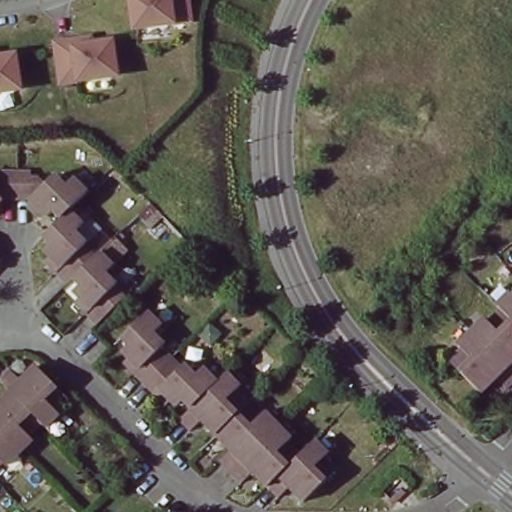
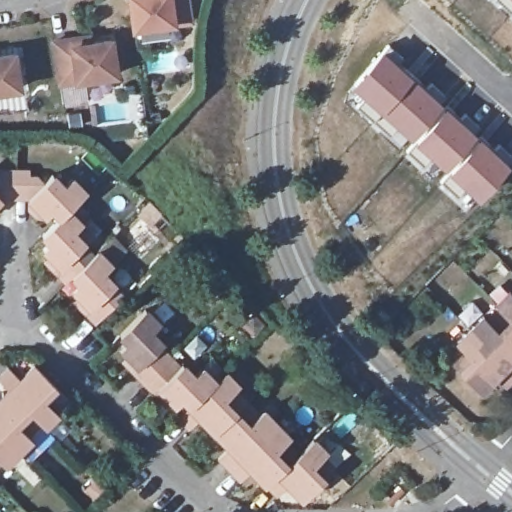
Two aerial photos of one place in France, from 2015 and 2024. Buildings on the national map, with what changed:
unchanged [(134,27),(129,0),(186,0),(189,20),(134,27)]
new [(512,0),(512,16),(497,0),(512,0)]
unchanged [(116,74),(60,82),(54,41),(72,39),(89,36),(90,43),(111,40),(116,74)]
new [(385,50),(444,104),(410,142),(366,109),(369,106),(350,89),(385,50)]
unchanged [(19,87),(0,90),(0,56),(14,54),(19,87)]
new [(444,104),(478,135),(445,172),(421,154),(410,142),(444,104)]
new [(478,135),(510,164),(477,199),(445,172),(478,135)]
unchanged [(0,207),(0,171),(5,171),(5,165),(19,165),(19,192),(5,192),(7,200),(0,207)]
unchanged [(32,201),(33,192),(19,192),(19,165),(33,165),(33,171),(39,171),(46,179),(56,169),(68,181),(76,172),(89,187),(73,205),(64,212),(57,205),(50,211),(44,212),(32,201)]
unchanged [(55,251),(48,244),(55,237),(48,229),(64,212),(73,205),(86,219),(78,226),(90,238),(88,240),(98,250),(78,270),(70,277),(60,266),(50,255),(55,251)]
unchanged [(85,292),(78,285),(85,277),(78,270),(98,250),(102,246),(116,260),(108,267),(120,279),(118,281),(128,292),(100,318),(90,307),(80,296),(85,292)]
unchanged [(501,305),(512,293),(512,316),(505,308),(501,305)]
unchanged [(130,350),(126,344),(132,337),(125,330),(145,310),(150,305),(163,319),(155,327),(167,339),(165,340),(175,350),(149,376),(147,377),(137,367),(125,355),(130,350)]
unchanged [(489,317),(493,321),(505,308),(512,316),(512,367),(475,330),(489,317)]
unchanged [(510,387),(499,376),(484,391),(454,360),(466,348),(461,344),(475,330),(512,367),(512,385),(510,387)]
unchanged [(159,386),(149,376),(175,350),(185,360),(187,357),(198,369),(207,361),(221,376),(195,401),(188,393),(181,401),(175,395),(171,398),(159,386)]
unchanged [(0,381),(0,378),(10,368),(21,380),(36,365),(67,396),(55,409),(60,414),(46,427),(40,422),(9,390),(0,381)]
unchanged [(231,367),(243,380),(239,385),(251,397),(220,428),(205,413),(194,424),(183,412),(195,401),(221,376),(231,367)]
unchanged [(9,390),(40,422),(29,433),(34,438),(19,452),(0,432),(0,398),(9,390)]
unchanged [(225,452),(235,443),(220,428),(251,397),(263,410),(268,405),(281,418),(236,463),(225,452)]
unchanged [(295,432),(290,437),(303,448),(271,480),(256,465),(247,474),(236,463),(281,418),(295,432)]
unchanged [(6,466),(1,461),(0,461),(0,432),(19,452),(6,466)]
unchanged [(318,433),(333,447),(328,452),(340,464),(309,496),(294,481),(282,491),(271,480),(303,448),(318,433)]

